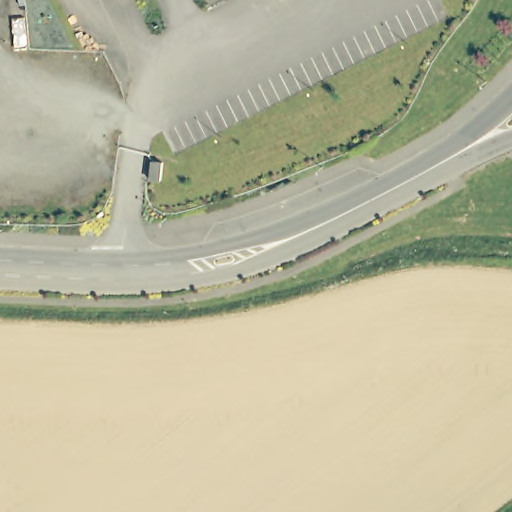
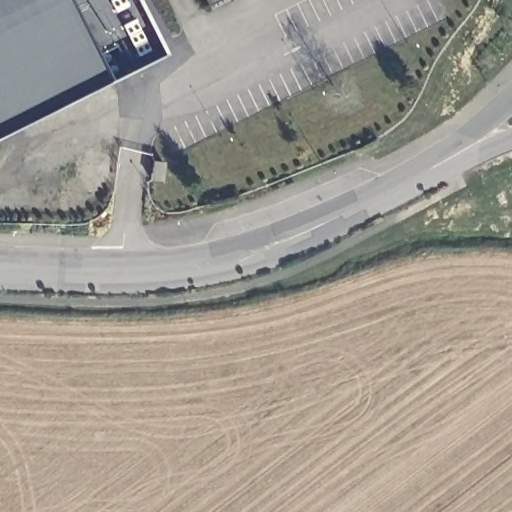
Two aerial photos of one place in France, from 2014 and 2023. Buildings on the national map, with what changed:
new [(132,0),(157,51),(0,130),(0,0),(132,0)]
unchanged [(148,179),(149,173),(150,173),(151,161),(160,162),(159,180),(148,179)]

